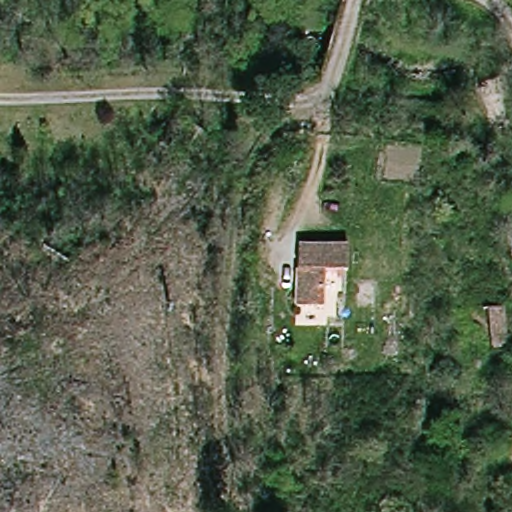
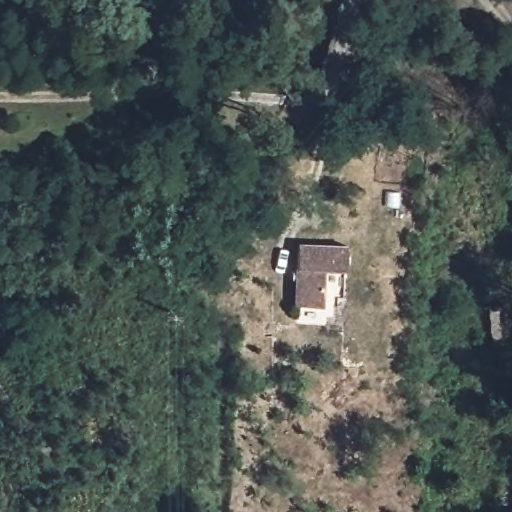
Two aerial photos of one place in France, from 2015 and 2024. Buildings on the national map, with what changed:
unchanged [(347,267),(333,266),(333,304),(300,303),(302,240),(347,241),(347,267)]
unchanged [(494,302),(506,301),(509,341),(496,342),(494,302)]

